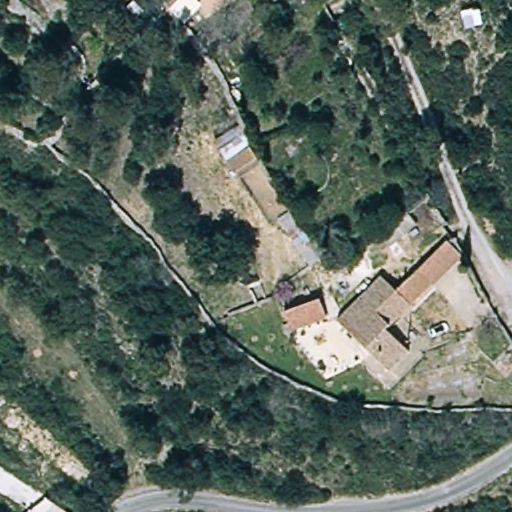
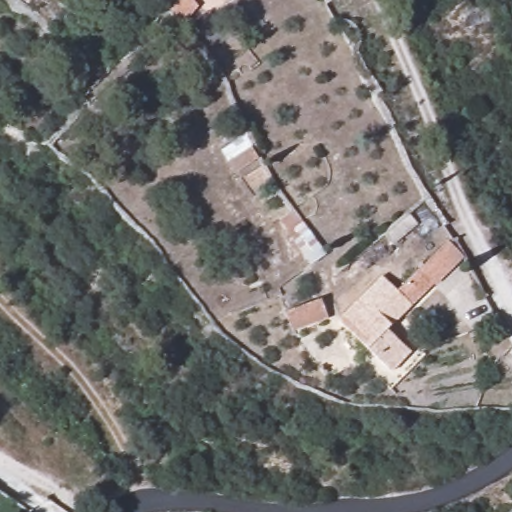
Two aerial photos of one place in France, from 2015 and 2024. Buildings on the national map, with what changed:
unchanged [(234,126),(254,157),(233,173),(217,146),(234,126)]
unchanged [(389,330),(405,344),(415,352),(394,375),(376,359),(328,315),(332,310),(343,300),(355,287),(365,297),(379,310),(451,239),(461,257),(389,330)]
unchanged [(311,304),(318,323),(302,328),(295,330),(292,322),(296,320),(293,310),(311,304)]

